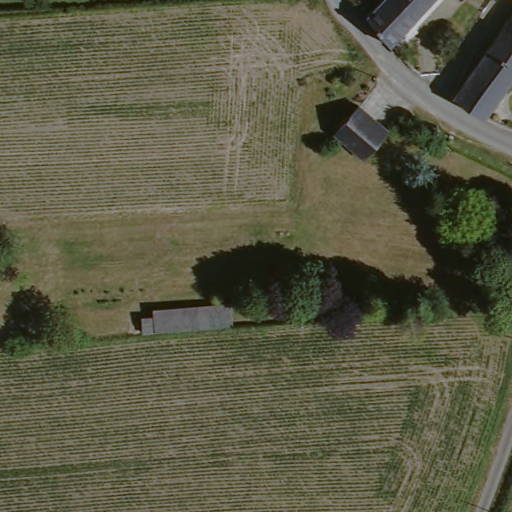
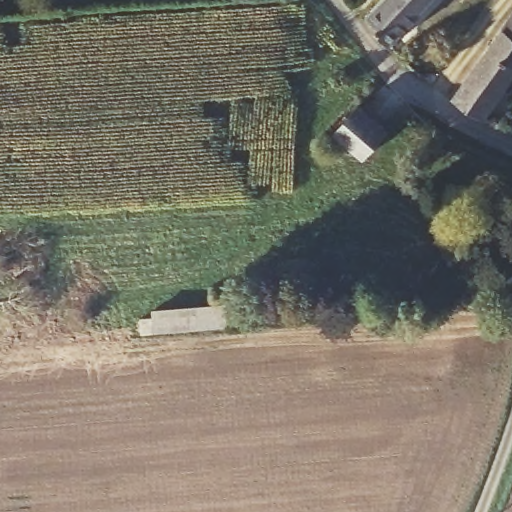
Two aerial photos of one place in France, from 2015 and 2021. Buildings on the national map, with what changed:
unchanged [(425,0),(381,44),(371,33),(365,26),(360,19),(358,16),(375,0),(425,0)]
unchanged [(505,28),(512,19),(512,78),(485,116),(455,95),(489,49),(505,28)]
unchanged [(333,140),(355,109),(387,132),(365,163),(333,140)]
unchanged [(236,305),(312,297),(315,320),(237,325),(236,305)]
unchanged [(142,339),(140,315),(224,306),(227,332),(142,339)]

